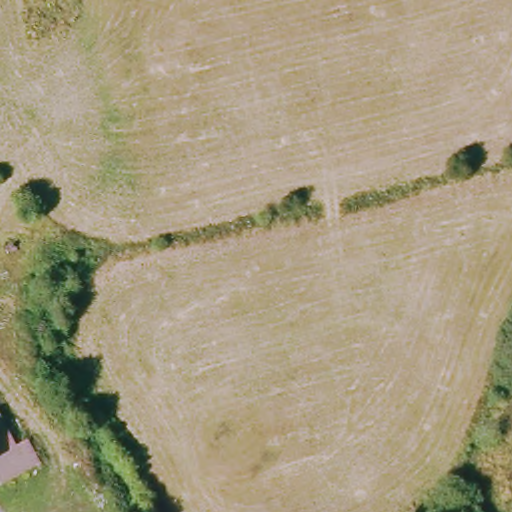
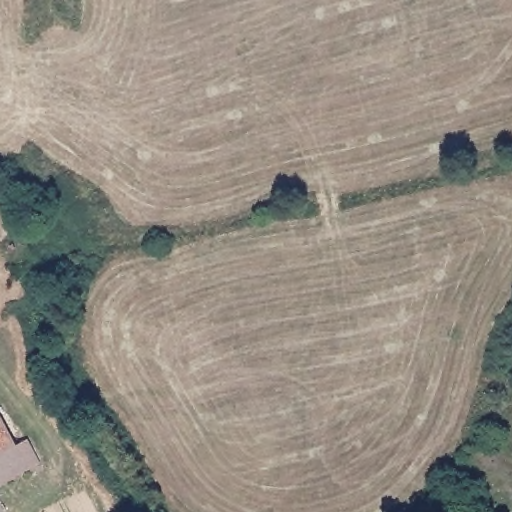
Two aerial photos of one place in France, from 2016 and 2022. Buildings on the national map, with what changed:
unchanged [(12,448),(27,442),(38,468),(0,487),(0,420),(12,448)]

